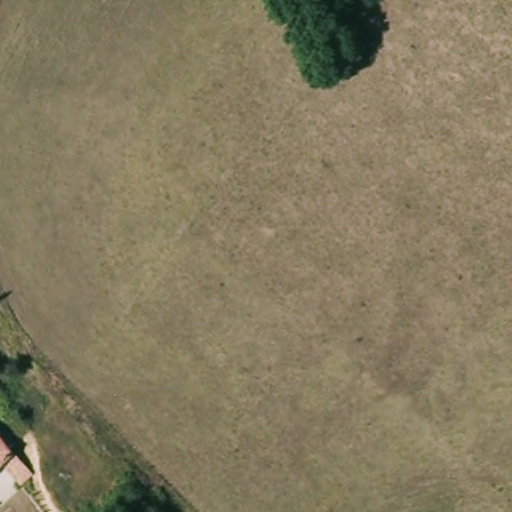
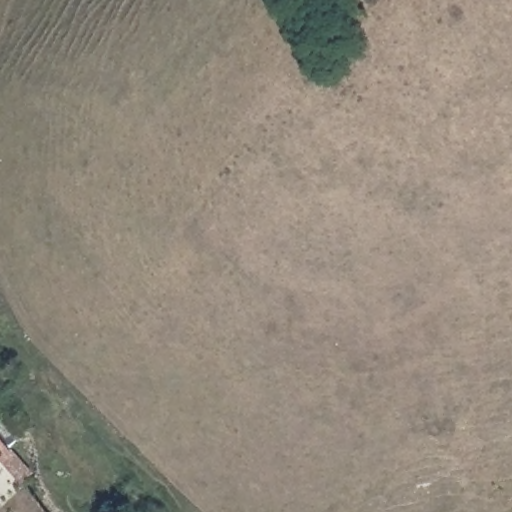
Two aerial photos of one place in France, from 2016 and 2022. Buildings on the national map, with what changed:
unchanged [(6,454),(0,459),(0,442),(9,452),(6,454)]

